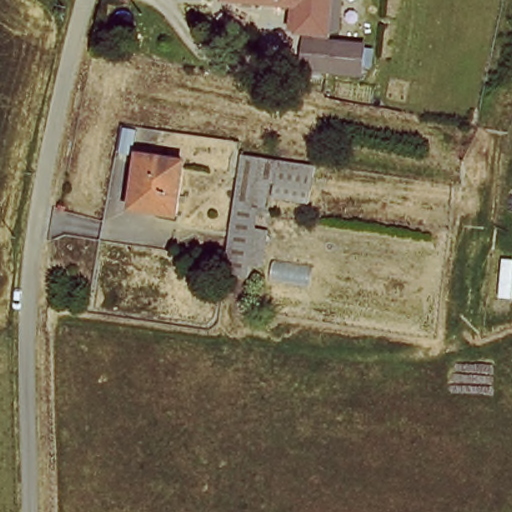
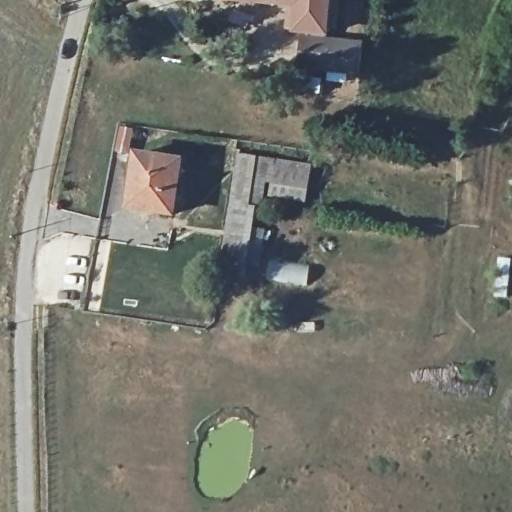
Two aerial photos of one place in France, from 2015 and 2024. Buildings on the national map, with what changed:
unchanged [(298,29),(300,2),(282,0),(334,0),(331,33),(298,29)]
unchanged [(361,71),(328,67),(327,70),(299,66),(302,36),(330,40),(363,46),(361,71)]
unchanged [(313,154),(308,192),(306,191),(265,185),(263,205),(256,204),(255,220),(266,221),(261,256),(248,254),(246,267),(223,265),(238,145),(309,154),(313,154)]
unchanged [(176,212),(132,206),(139,154),(183,162),(176,212)]

